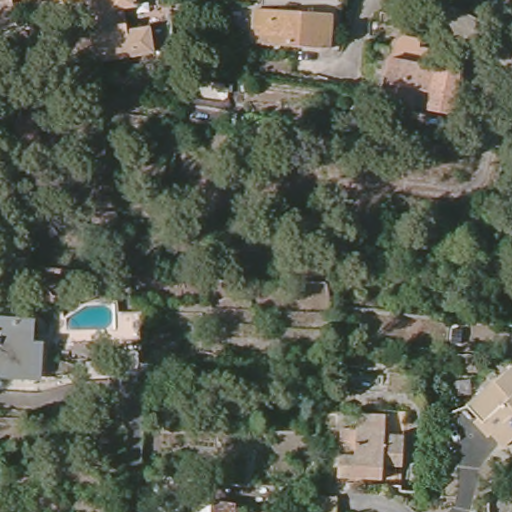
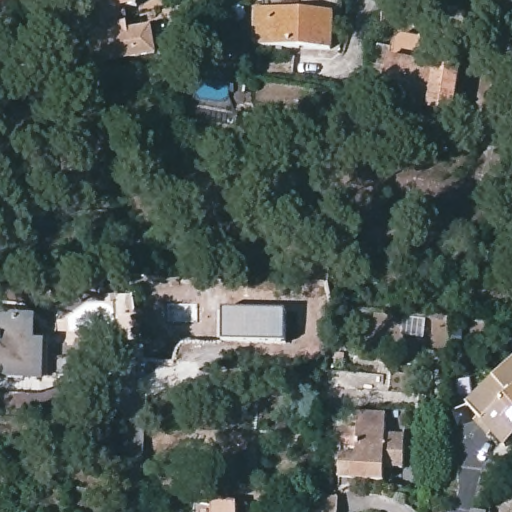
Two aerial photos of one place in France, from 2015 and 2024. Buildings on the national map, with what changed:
unchanged [(24,25),(3,29),(0,15),(0,0),(18,0),(24,25)]
unchanged [(125,39),(149,35),(151,51),(93,61),(82,0),(131,0),(134,14),(122,16),(125,39)]
unchanged [(336,9),(335,32),(327,31),(326,65),(250,60),(250,28),(254,29),(257,5),(336,9)]
unchanged [(463,65),(450,124),(427,120),(427,117),(414,115),(412,124),(379,115),(394,47),(399,44),(423,49),(422,56),(463,65)]
new [(286,311),(285,342),(219,342),(218,307),(286,311)]
unchanged [(28,324),(27,346),(36,347),(35,380),(0,379),(0,322),(28,324)]
unchanged [(480,416),(470,405),(512,365),(512,440),(507,445),(494,430),(489,435),(475,420),(480,416)]
unchanged [(367,478),(355,478),(355,483),(348,483),(348,478),(339,477),(341,429),(356,429),(356,423),(357,412),(385,413),(384,423),(384,434),(404,435),(404,443),(403,465),(383,465),(383,478),(383,485),(367,483),(367,478)]
unchanged [(231,512),(207,512),(207,497),(230,500),(231,512)]
unchanged [(333,501),(332,512),(310,512),(311,498),(333,501)]

